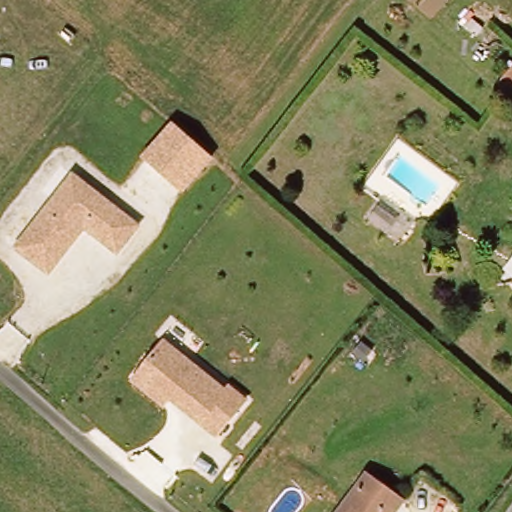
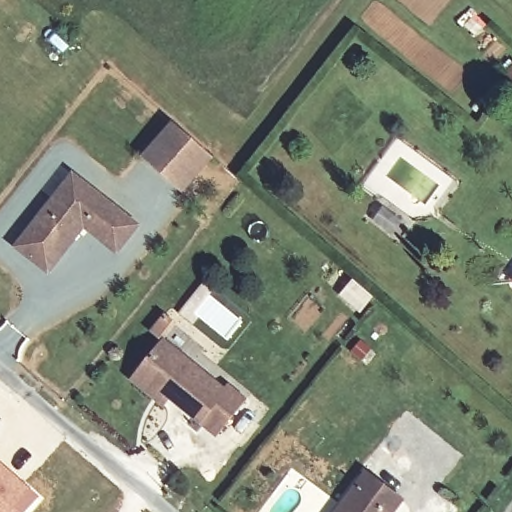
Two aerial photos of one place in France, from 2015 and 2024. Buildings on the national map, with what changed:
unchanged [(512,73),(512,89),(504,82),(512,73)]
unchanged [(175,120),(217,160),(185,196),(143,157),(175,120)]
unchanged [(74,172),(142,225),(117,257),(85,232),(50,277),(14,247),(74,172)]
unchanged [(227,388),(231,384),(249,398),(218,438),(171,402),(166,410),(131,382),(166,337),(227,388)]
new [(0,466),(38,498),(27,512),(0,512),(0,466)]
unchanged [(383,468),(421,495),(408,512),(352,512),(383,468)]

